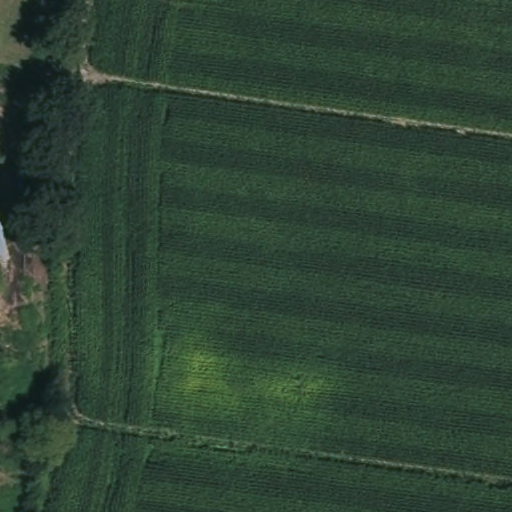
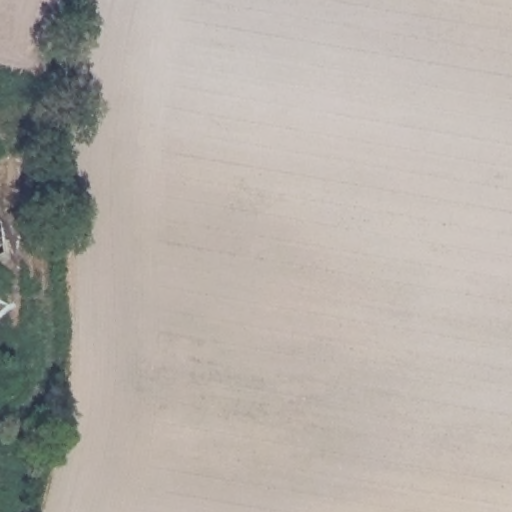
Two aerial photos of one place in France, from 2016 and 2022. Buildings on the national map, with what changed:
unchanged [(9,252),(0,256),(0,216),(9,234),(9,252)]

